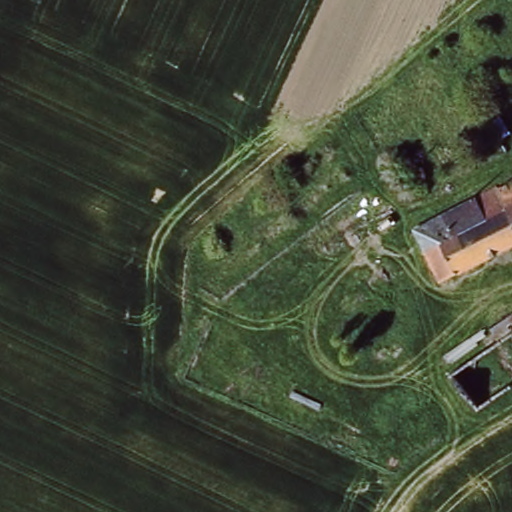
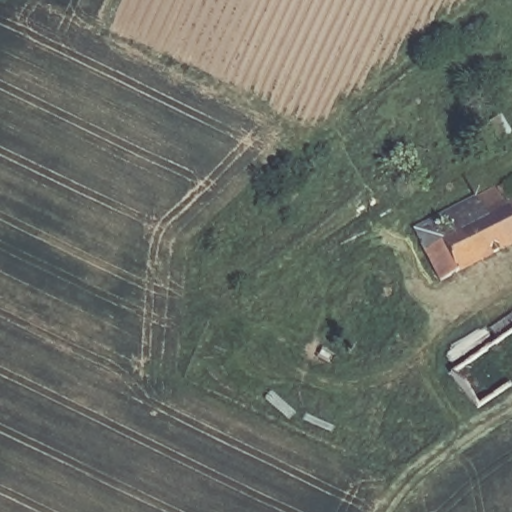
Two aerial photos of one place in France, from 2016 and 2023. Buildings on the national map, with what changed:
unchanged [(512,178),(512,246),(445,282),(418,228),(512,178)]

